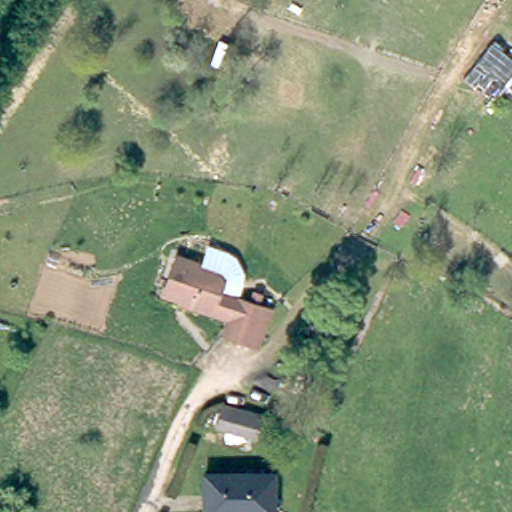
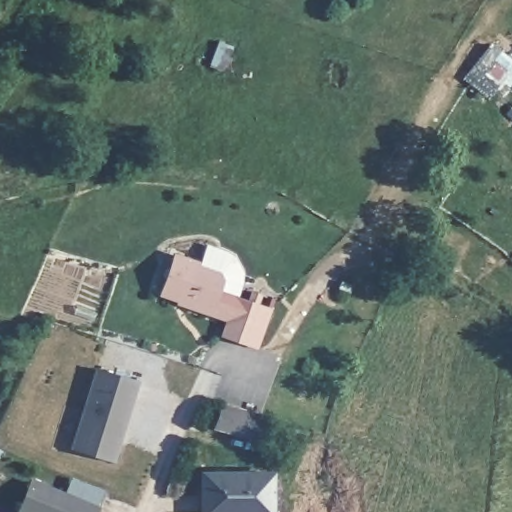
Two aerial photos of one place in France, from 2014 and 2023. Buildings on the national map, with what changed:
unchanged [(212,301),(164,288),(174,250),(222,263),(212,301)]
unchanged [(262,345),(253,343),(226,335),(237,297),(264,305),(273,307),(262,345)]
new [(95,368),(140,380),(115,462),(70,448),(95,368)]
unchanged [(228,393),(262,408),(253,427),(217,411),(225,396),(228,393)]
unchanged [(270,512),(203,512),(205,474),(272,478),(270,512)]
new [(100,508),(99,512),(18,512),(32,479),(100,508)]

